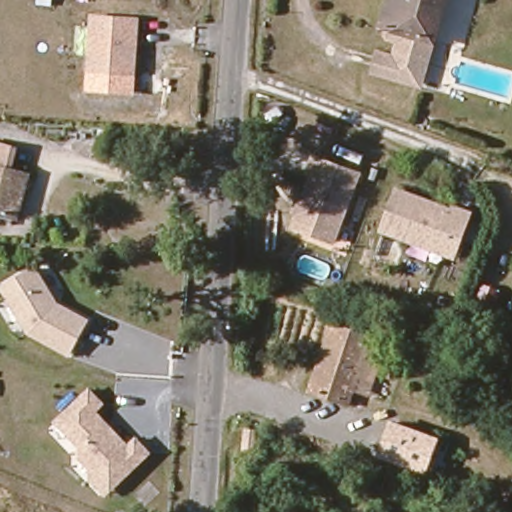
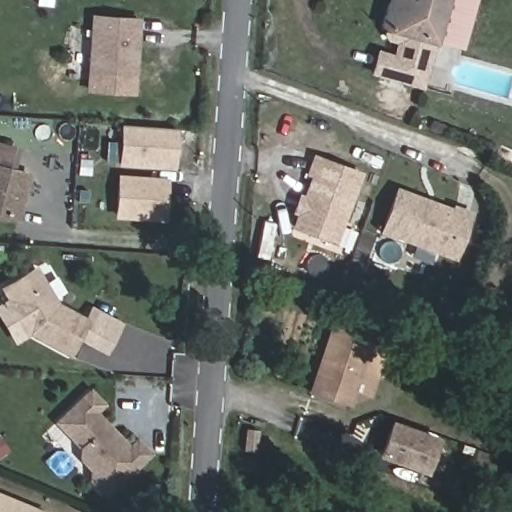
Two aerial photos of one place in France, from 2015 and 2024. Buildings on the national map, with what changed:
unchanged [(389,31),(384,30),(392,0),(450,0),(437,45),(389,31)]
unchanged [(141,16),(137,76),(86,73),(90,13),(141,16)]
unchanged [(425,90),(376,76),(382,55),(397,60),(400,50),(396,44),(390,42),(387,36),(389,31),(437,45),(425,90)]
new [(137,76),(136,96),(85,93),(86,73),(137,76)]
new [(119,124),(178,129),(174,169),(117,166),(119,124)]
unchanged [(13,176),(0,173),(0,141),(20,146),(13,176)]
unchanged [(330,244),(292,230),(297,216),(301,214),(304,207),(302,202),(311,178),(306,176),(311,161),(356,177),(330,244)]
unchanged [(0,215),(0,173),(13,176),(24,179),(14,219),(0,215)]
new [(168,176),(166,221),(113,218),(116,174),(168,176)]
unchanged [(461,261),(390,234),(404,194),(460,213),(461,210),(477,216),(461,261)]
unchanged [(89,319),(71,356),(27,334),(0,290),(0,285),(35,265),(60,304),(89,319)]
unchanged [(497,319),(481,313),(489,289),(505,295),(497,319)]
unchanged [(458,317),(444,313),(448,300),(462,303),(458,317)]
unchanged [(371,383),(355,378),(346,406),(308,394),(330,328),(383,345),(371,383)]
unchanged [(98,412),(128,444),(137,435),(153,453),(105,499),(88,481),(89,472),(78,460),(78,448),(52,422),(89,387),(107,405),(98,412)]
unchanged [(422,474),(378,458),(390,427),(434,443),(422,474)]
new [(0,492),(48,511),(48,512),(0,512),(0,492)]

